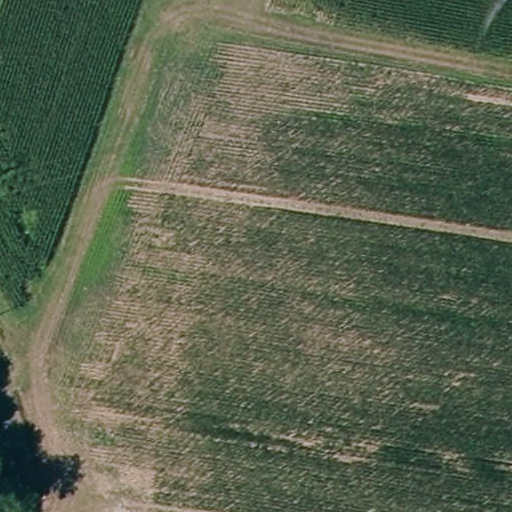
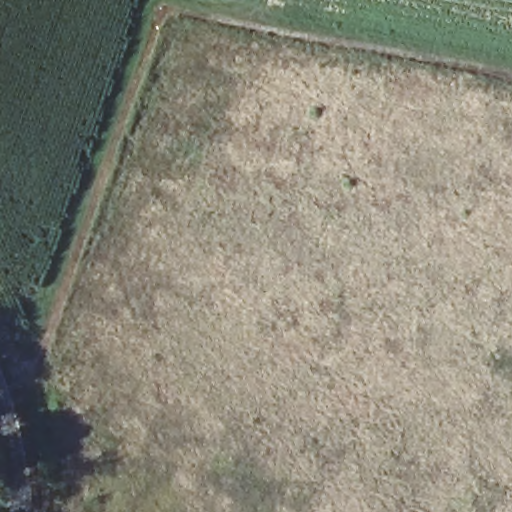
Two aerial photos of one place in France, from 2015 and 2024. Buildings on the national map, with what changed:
[]

